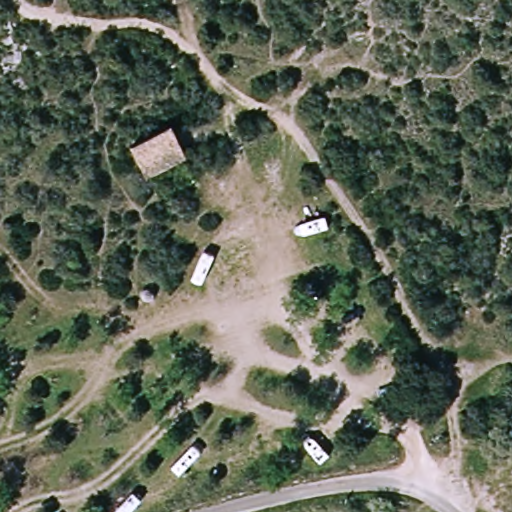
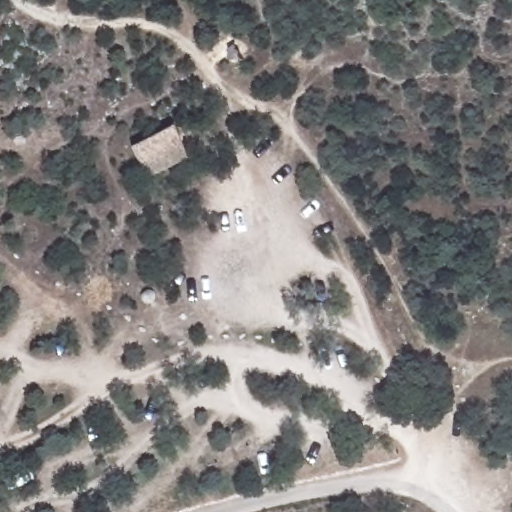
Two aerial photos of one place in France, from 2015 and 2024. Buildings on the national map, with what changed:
unchanged [(152,179),(134,147),(175,127),(193,159),(152,179)]

